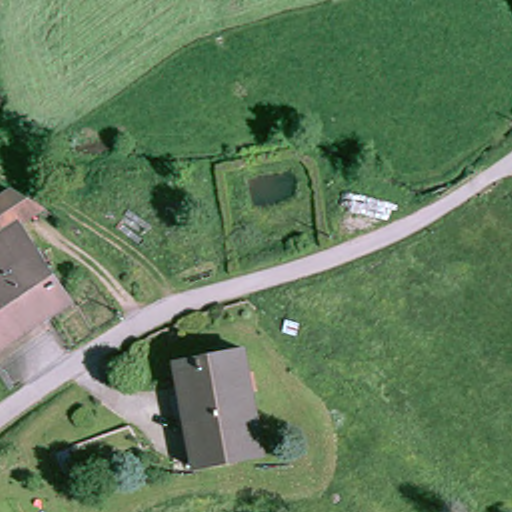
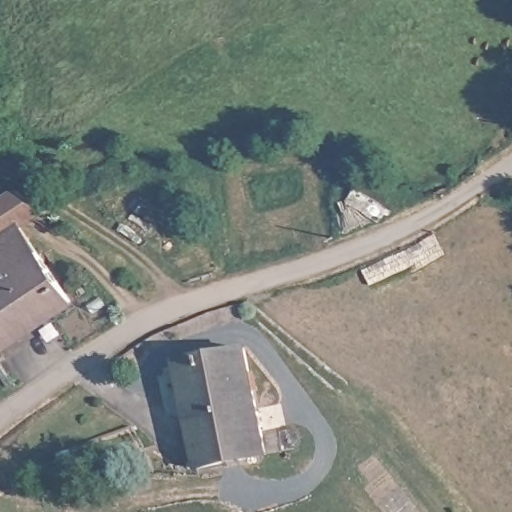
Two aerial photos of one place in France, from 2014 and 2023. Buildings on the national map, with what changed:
unchanged [(12,196),(45,216),(27,228),(0,245),(0,204),(12,196)]
unchanged [(7,278),(0,268),(0,245),(27,228),(75,305),(0,356),(0,283),(7,278)]
unchanged [(199,470),(178,365),(245,352),(265,457),(199,470)]

